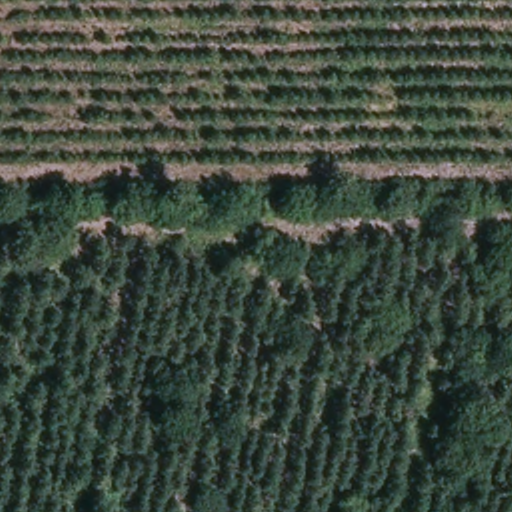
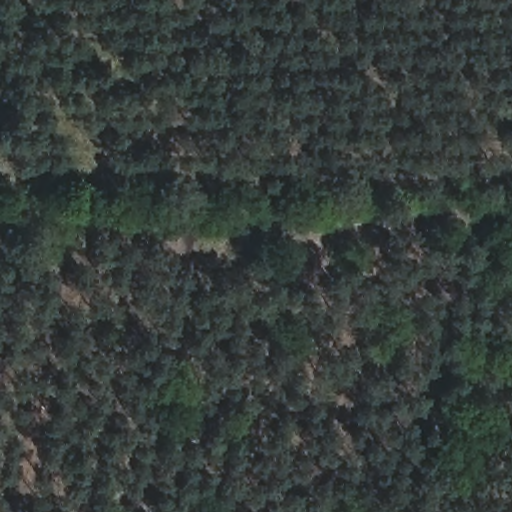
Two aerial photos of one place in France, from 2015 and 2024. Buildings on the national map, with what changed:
unchanged [(27,234),(38,237),(35,252),(23,249),(27,234)]

